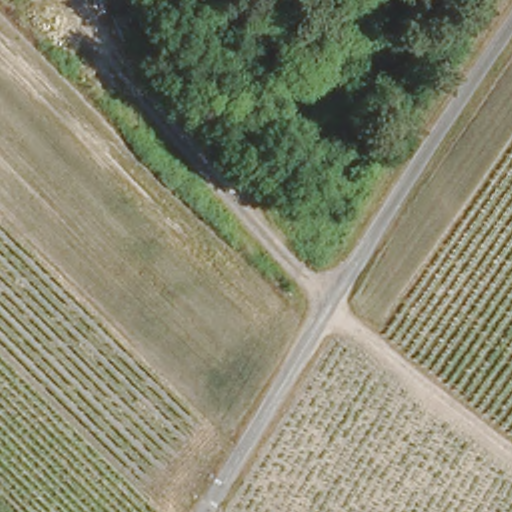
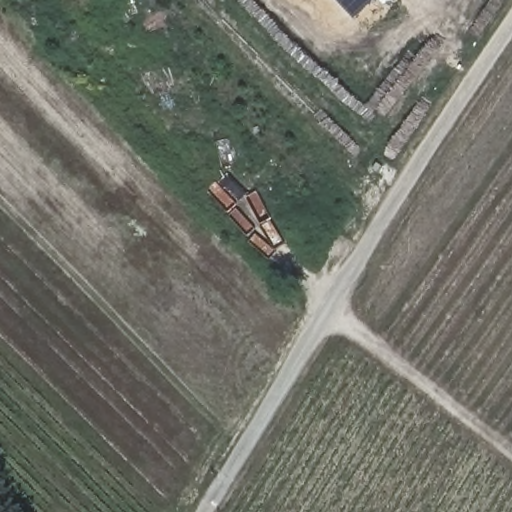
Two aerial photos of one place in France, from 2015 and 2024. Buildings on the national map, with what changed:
new [(338,0),(372,0),(354,17),(338,0)]

